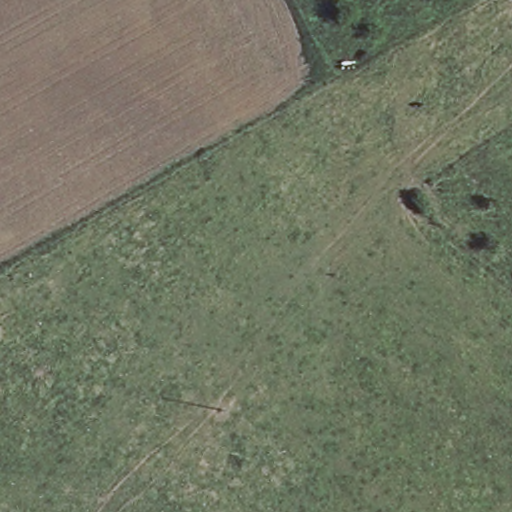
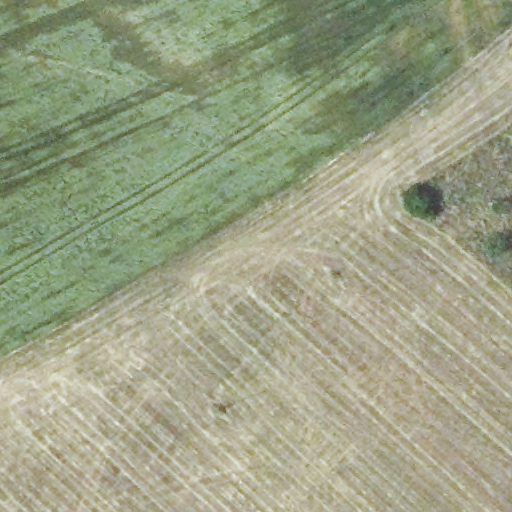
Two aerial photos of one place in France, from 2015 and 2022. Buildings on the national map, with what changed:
[]

